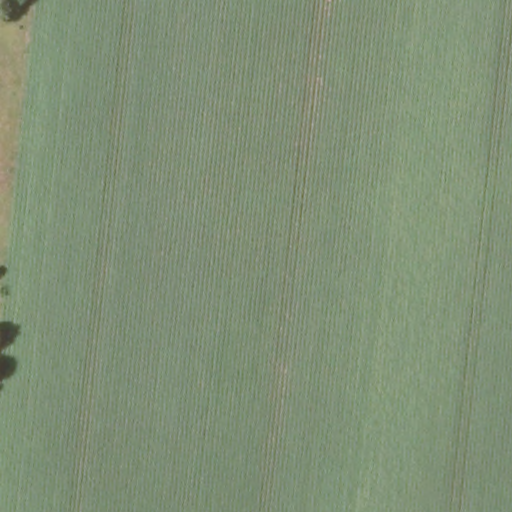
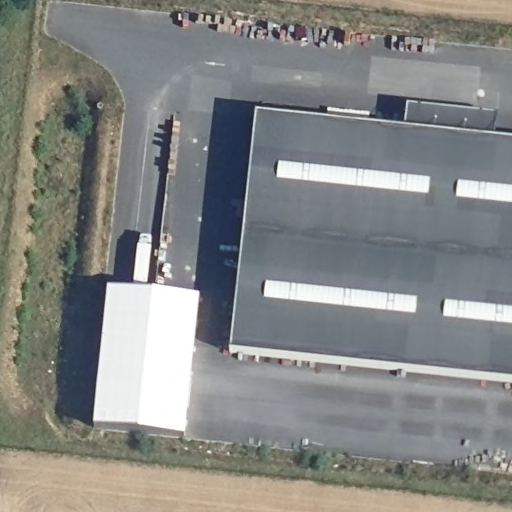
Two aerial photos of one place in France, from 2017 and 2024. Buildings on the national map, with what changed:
new [(499,117),(496,141),(406,131),(409,107),(499,117)]
new [(406,131),(496,141),(512,143),(512,384),(231,353),(257,115),(406,131)]
new [(94,427),(108,288),(201,297),(187,438),(94,427)]

